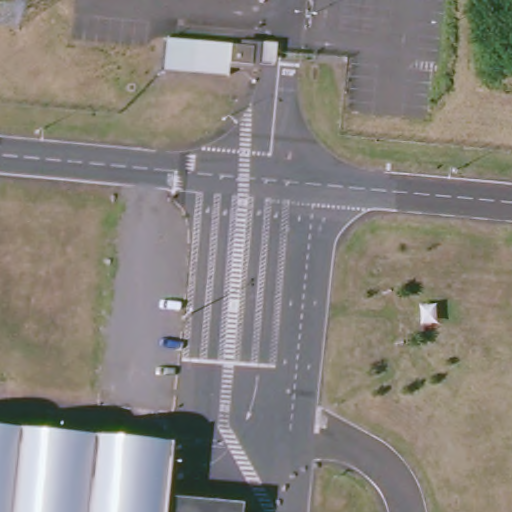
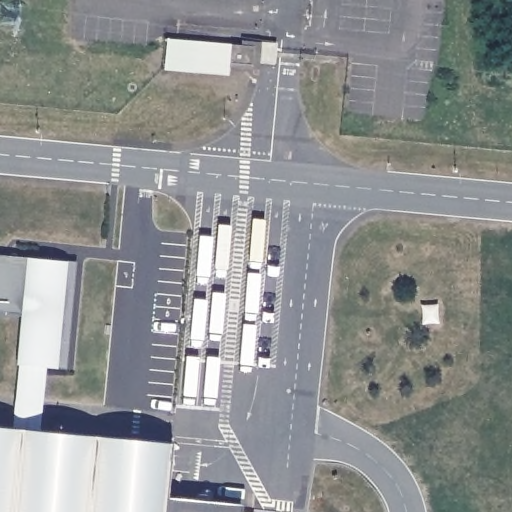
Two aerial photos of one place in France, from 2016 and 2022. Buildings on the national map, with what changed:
unchanged [(281,52),(280,55),(279,65),(256,62),(256,68),(231,66),(229,76),(193,71),(196,42),(233,43),(241,44),(241,39),(258,40),(281,42),(281,52)]
new [(54,275),(69,292),(62,371),(41,369),(29,378),(21,377),(26,330),(0,327),(0,269),(54,275)]
new [(41,369),(62,371),(69,292),(54,275),(82,277),(72,382),(29,378),(41,369)]
unchanged [(168,442),(164,496),(238,502),(237,512),(0,512),(0,426),(168,442)]

